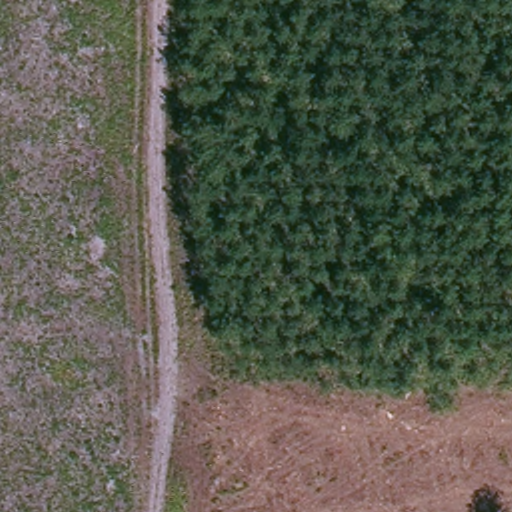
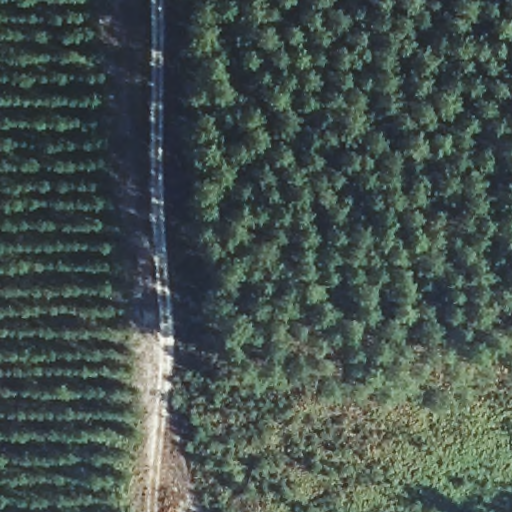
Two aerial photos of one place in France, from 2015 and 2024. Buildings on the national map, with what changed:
[]

